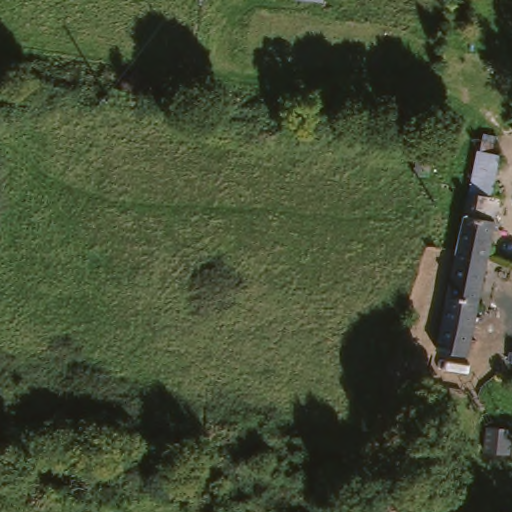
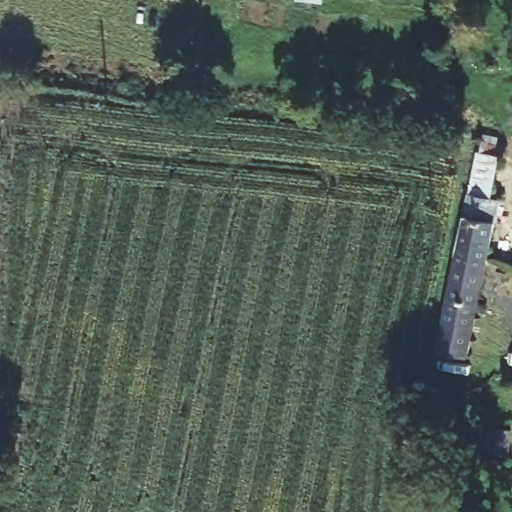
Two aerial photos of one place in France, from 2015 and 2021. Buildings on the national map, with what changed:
unchanged [(479,209),(486,210),(482,250),(453,248),(462,180),(484,183),(479,209)]
unchanged [(482,250),(470,347),(441,341),(453,248),(482,250)]

